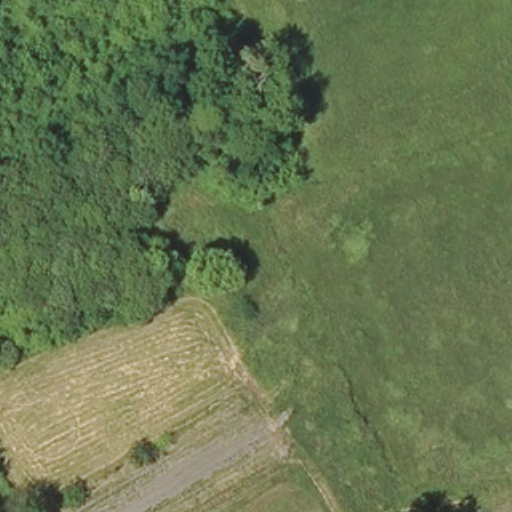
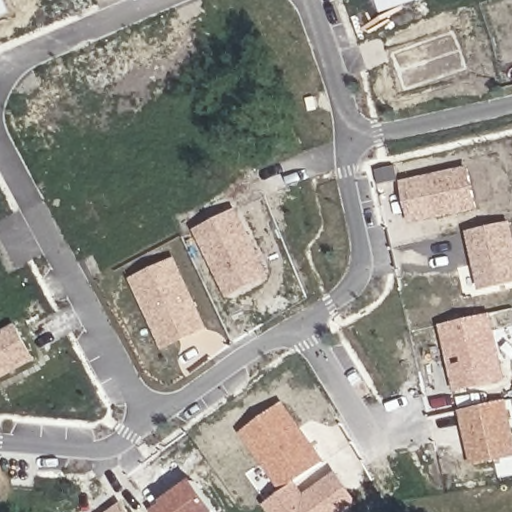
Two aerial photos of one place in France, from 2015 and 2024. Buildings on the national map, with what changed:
new [(368,0),(409,0),(373,12),(368,0)]
new [(4,10),(0,12),(0,2),(4,10)]
new [(398,91),(386,52),(448,30),(462,68),(398,91)]
new [(470,167),(479,210),(411,225),(402,182),(470,167)]
new [(271,277),(230,297),(197,230),(238,210),(271,277)]
new [(469,232),(512,222),(512,284),(482,291),(469,232)]
new [(208,329),(164,350),(132,281),(179,260),(208,329)]
new [(494,313),(509,381),(458,392),(443,325),(472,318),(494,313)]
new [(18,324),(38,360),(0,380),(0,334),(18,324)]
new [(512,458),(473,466),(461,411),(510,400),(512,412),(512,458)]
new [(306,495),(340,472),(361,503),(349,512),(270,512),(265,505),(282,492),(241,433),(284,403),(325,461),(297,482),(306,495)]
new [(164,502),(193,480),(217,512),(171,512),(164,502)]
new [(151,510),(163,501),(171,512),(153,512),(151,510)]
new [(124,502),(131,512),(111,512),(124,502)]

